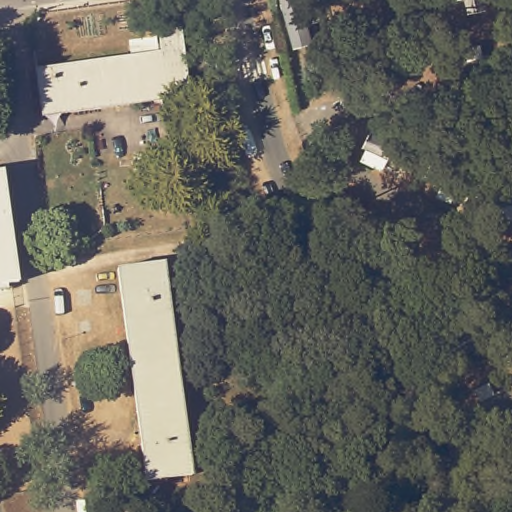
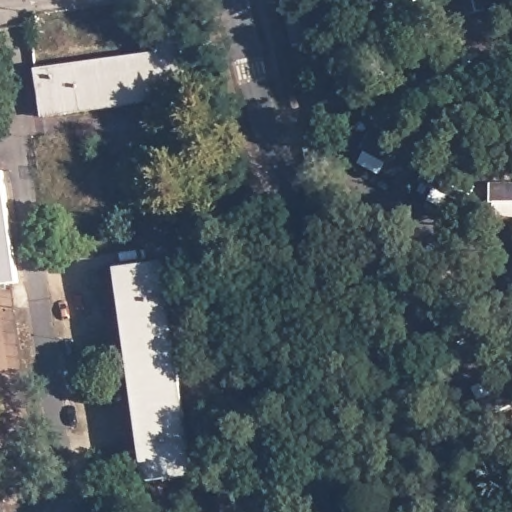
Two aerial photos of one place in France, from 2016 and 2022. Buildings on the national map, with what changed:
unchanged [(316,44),(293,48),(282,0),(307,0),(316,44)]
unchanged [(488,19),(464,22),(461,0),(485,0),(488,19)]
unchanged [(46,110),(41,71),(164,54),(160,34),(175,32),(185,30),(186,47),(192,97),(65,115),(47,117),(46,110)]
unchanged [(17,282),(0,284),(0,172),(1,172),(17,282)]
unchanged [(192,475),(145,480),(118,267),(164,261),(192,475)]

